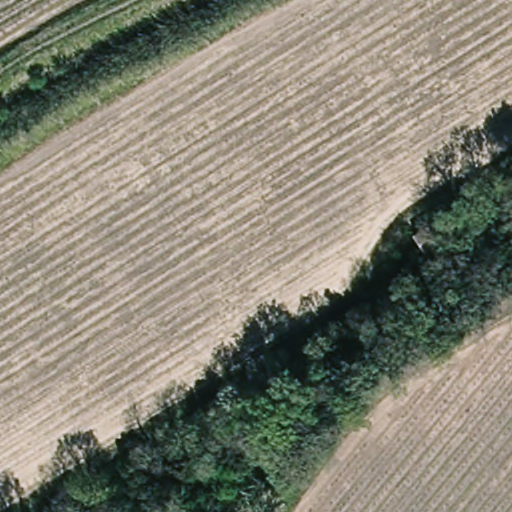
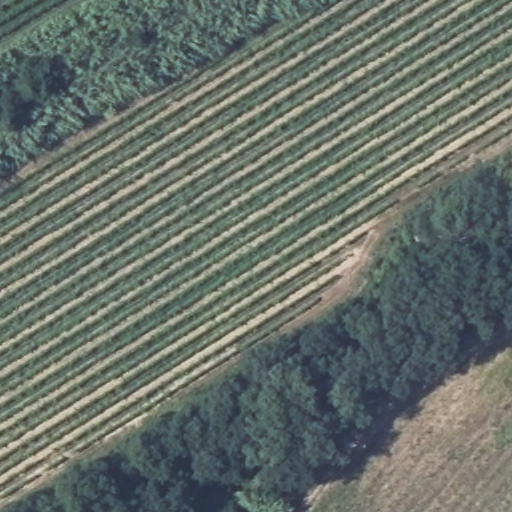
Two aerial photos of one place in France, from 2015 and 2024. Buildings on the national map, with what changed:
unchanged [(439,229),(449,244),(436,253),(423,239),(439,229)]

